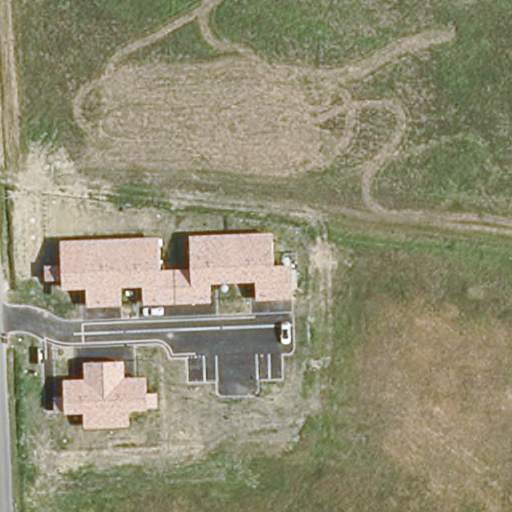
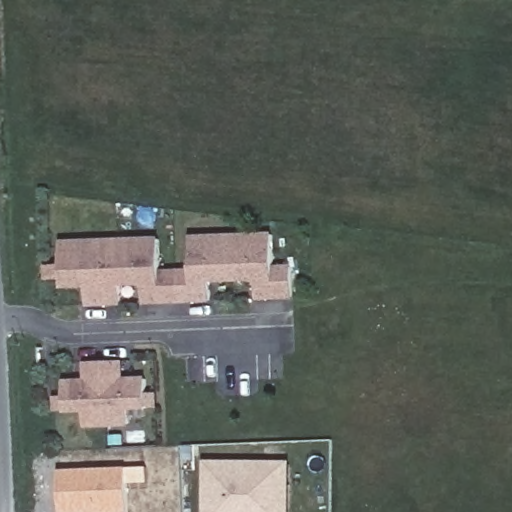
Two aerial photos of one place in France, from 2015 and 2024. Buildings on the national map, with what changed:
unchanged [(256,300),(256,281),(211,283),(212,303),(143,306),(142,286),(121,287),(121,305),(87,307),(85,288),(63,289),(61,242),(159,238),(161,269),(191,268),(191,237),(272,234),(274,266),(292,266),(295,299),(256,300)]
unchanged [(86,429),(85,413),(64,414),(63,379),(85,379),(84,363),(124,360),(125,379),(145,378),(146,394),(158,393),(158,410),(128,412),(129,427),(86,429)]
new [(203,461),(290,461),(287,512),(203,512),(203,461)]
new [(59,472),(126,469),(128,512),(60,512),(59,472)]

